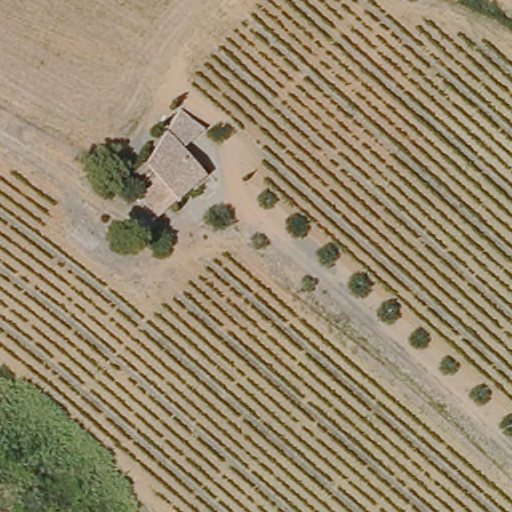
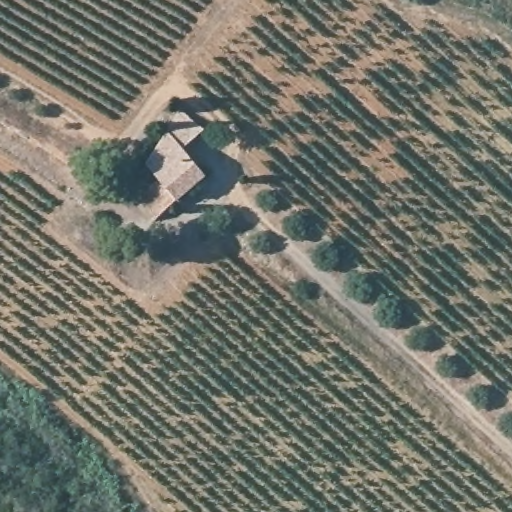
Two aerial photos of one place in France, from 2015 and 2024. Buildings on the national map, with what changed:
unchanged [(171,126),(180,106),(202,121),(189,140),(216,161),(213,166),(203,178),(193,189),(167,169),(148,155),(171,126)]
unchanged [(193,189),(171,212),(145,193),(167,169),(193,189)]

